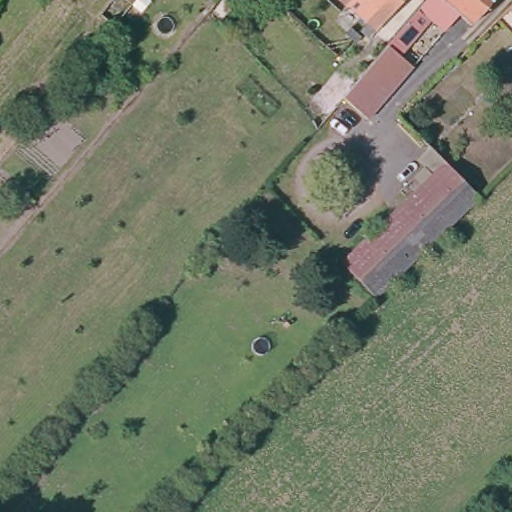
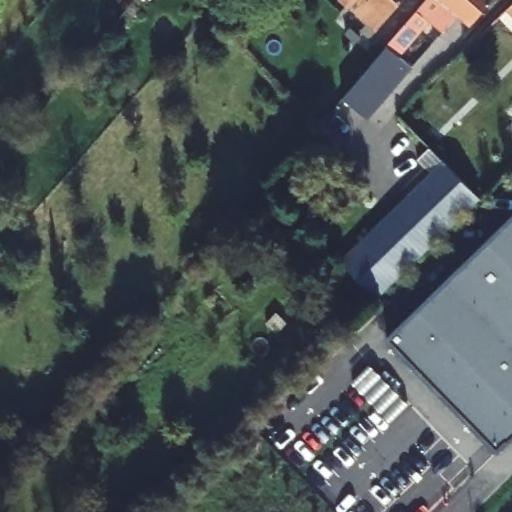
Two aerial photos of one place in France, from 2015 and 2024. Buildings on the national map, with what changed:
unchanged [(107,18),(122,0),(141,0),(117,27),(107,18)]
unchanged [(345,0),(341,4),(340,5),(335,0),(345,0)]
unchanged [(488,0),(465,25),(453,15),(439,31),(424,19),(393,56),(407,68),(362,119),(337,99),(423,0),(488,0)]
unchanged [(371,0),(355,17),(341,4),(345,0),(371,0)]
unchanged [(347,25),(355,17),(371,0),(398,0),(362,39),(347,25)]
unchanged [(512,3),(512,19),(504,11),(512,3)]
unchanged [(353,36),(348,42),(343,38),(349,32),(353,36)]
unchanged [(430,148),(477,197),(372,300),(337,264),(431,175),(416,158),(428,146),(430,148)]
new [(382,338),(512,216),(512,431),(494,449),(382,338)]
new [(353,386),(370,368),(406,405),(388,423),(353,386)]

